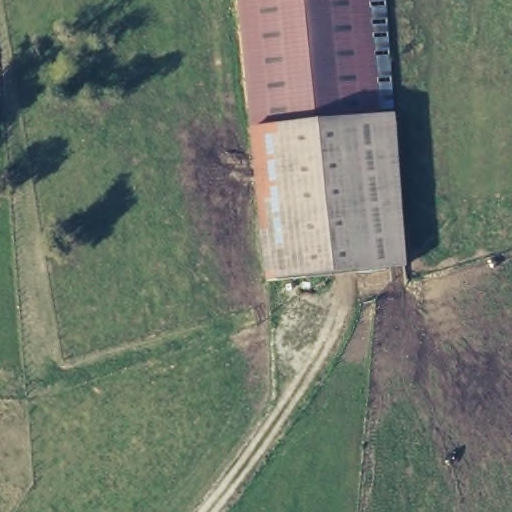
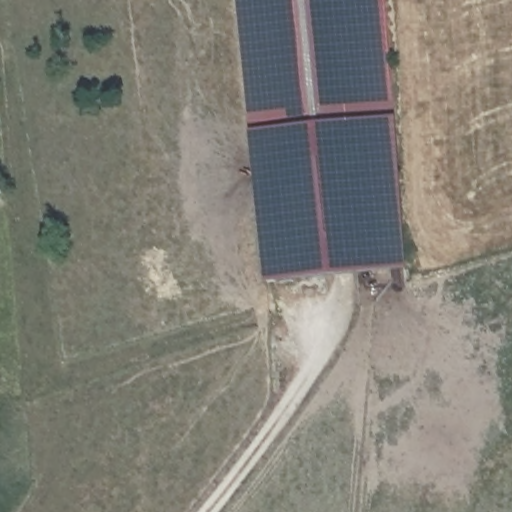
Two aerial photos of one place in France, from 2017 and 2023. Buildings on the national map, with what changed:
unchanged [(407,268),(247,284),(233,130),(248,129),(235,0),(387,0),(395,114),(407,268)]

